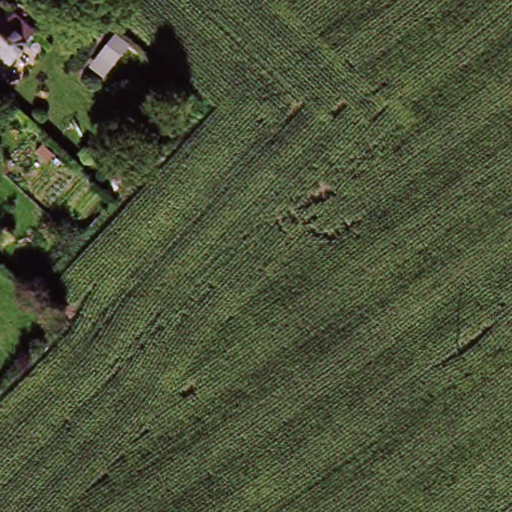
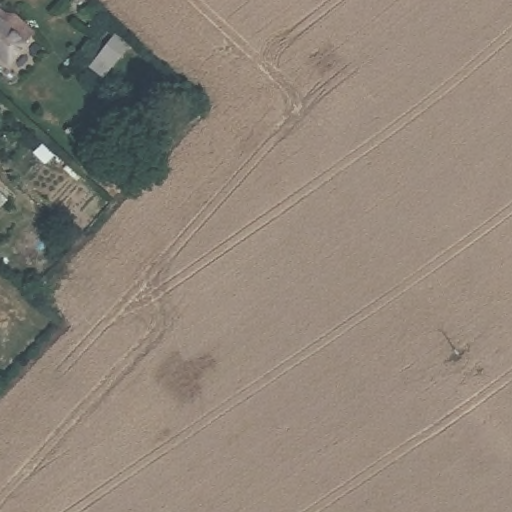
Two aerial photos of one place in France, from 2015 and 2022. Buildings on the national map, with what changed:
unchanged [(0,62),(0,23),(12,34),(18,29),(30,41),(5,66),(0,62)]

